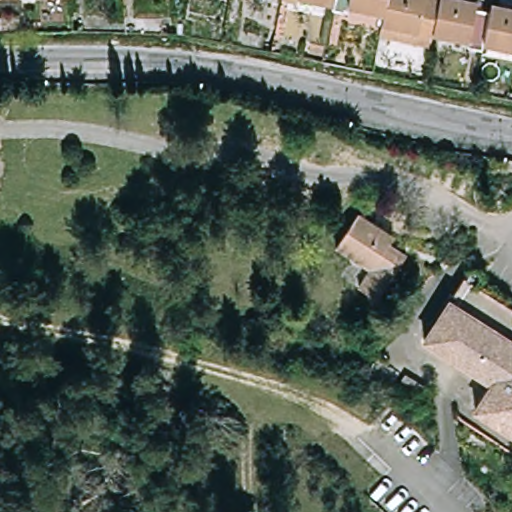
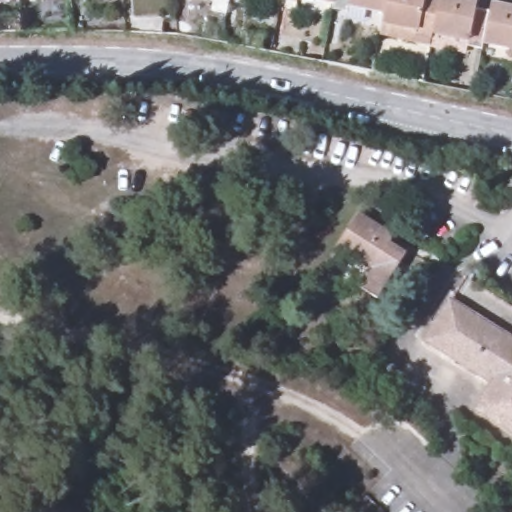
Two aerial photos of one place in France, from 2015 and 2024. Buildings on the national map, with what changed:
unchanged [(329,4),(330,0),(342,0),(341,6),(329,4)]
unchanged [(383,0),(381,9),(342,0),(383,0)]
unchanged [(381,9),(383,0),(435,0),(428,29),(427,34),(426,41),(377,29),(379,18),(381,9)]
unchanged [(464,41),(465,36),(428,29),(435,0),(473,0),(472,2),(489,6),(482,40),(481,45),(464,41)]
unchanged [(512,47),(482,40),(489,6),(490,1),(512,5),(512,47)]
unchanged [(390,232),(383,244),(403,256),(378,293),(360,280),(369,266),(333,242),(355,209),(390,232)]
unchanged [(491,381),(427,339),(463,279),(512,309),(512,429),(474,406),(491,381)]

